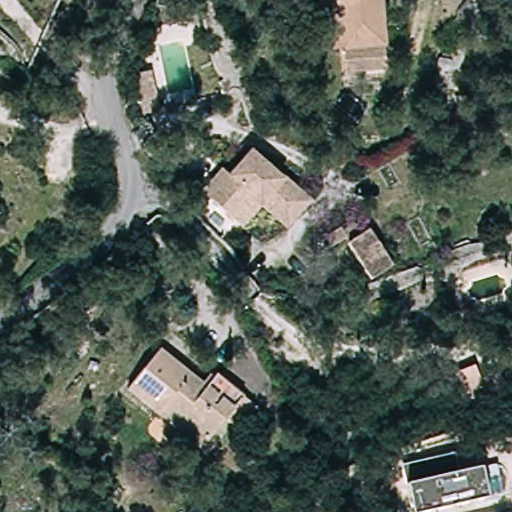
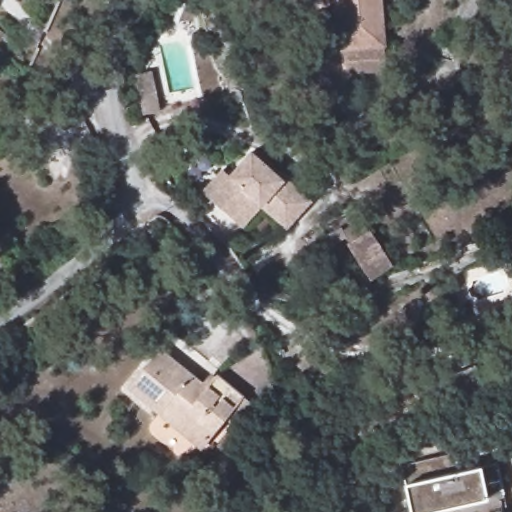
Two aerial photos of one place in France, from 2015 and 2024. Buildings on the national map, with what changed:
unchanged [(342,74),(336,0),(378,0),(384,72),(342,74)]
unchanged [(138,77),(154,74),(160,114),(144,115),(138,77)]
unchanged [(284,232),(258,208),(239,229),(198,192),(218,169),(226,177),(248,151),(289,186),(309,203),(301,213),(284,232)]
unchanged [(343,228),(346,232),(358,224),(364,235),(372,229),(396,265),(374,278),(350,245),(353,244),(349,238),(334,248),(328,236),(343,228)]
unchanged [(154,412),(128,388),(164,349),(205,385),(214,374),(240,398),(205,438),(196,448),(154,412)]
unchanged [(507,384),(449,408),(439,379),(474,364),(479,376),(496,369),(499,368),(507,384)]
unchanged [(497,466),(502,493),(416,511),(411,484),(497,466)]

